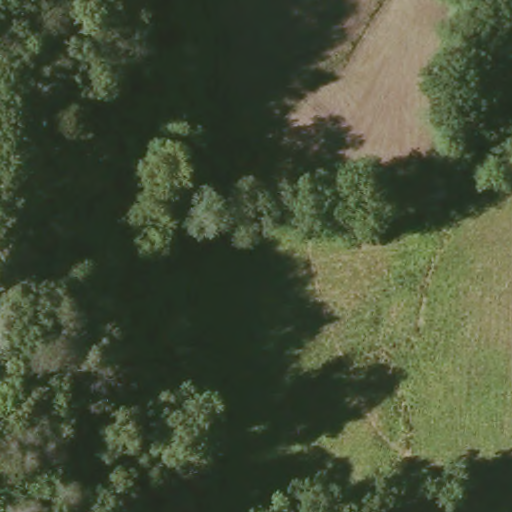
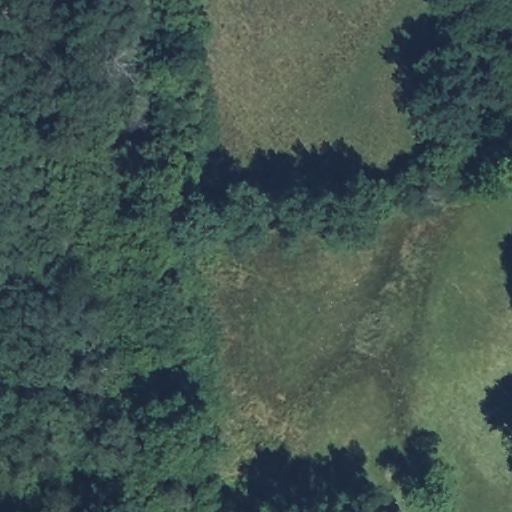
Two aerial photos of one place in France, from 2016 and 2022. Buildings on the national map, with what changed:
[]

